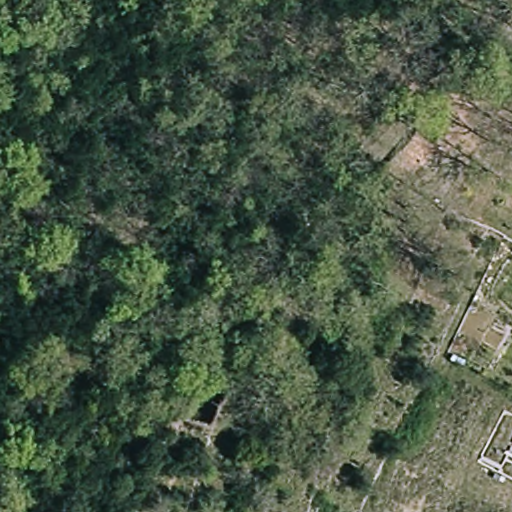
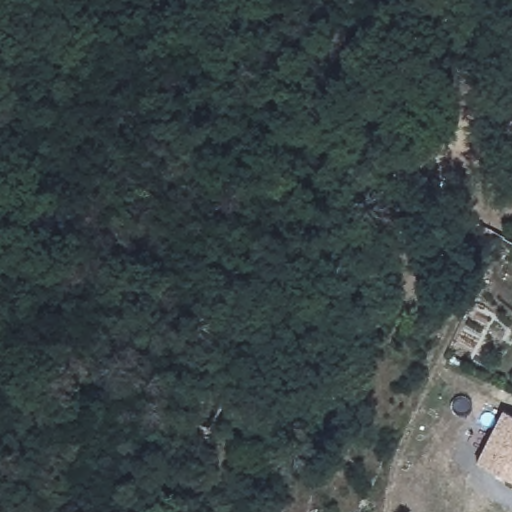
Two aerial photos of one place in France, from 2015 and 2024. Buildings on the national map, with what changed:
unchanged [(414,177),(394,160),(412,139),(430,155),(414,177)]
new [(512,415),(512,483),(497,474),(474,462),(501,410),(512,415)]

